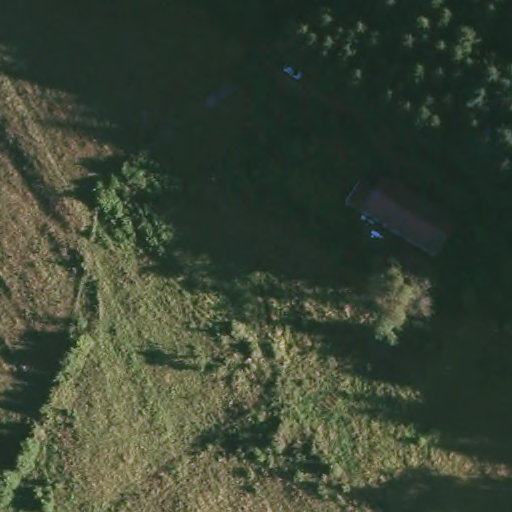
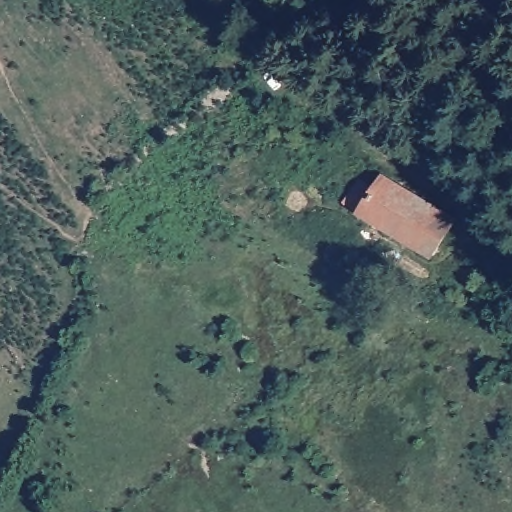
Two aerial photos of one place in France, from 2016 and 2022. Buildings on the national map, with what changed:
unchanged [(458,223),(427,259),(347,205),(367,177),(386,191),(399,178),(458,223)]

